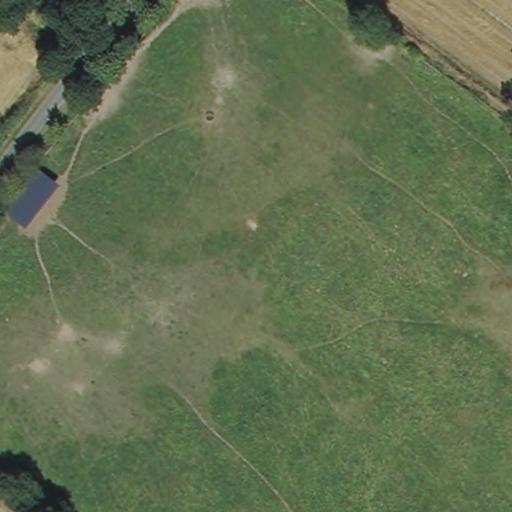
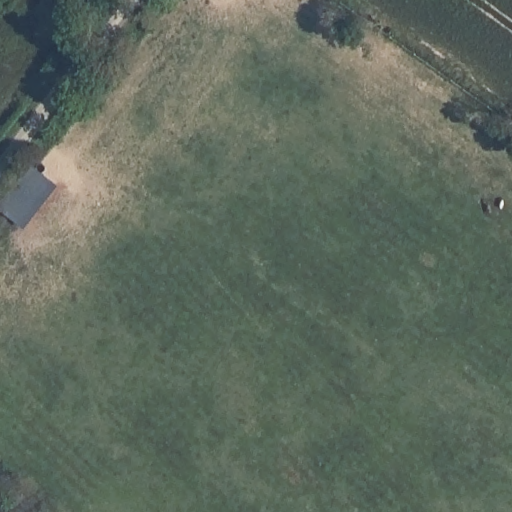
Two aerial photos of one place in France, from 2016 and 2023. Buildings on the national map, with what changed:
unchanged [(1,208),(34,164),(58,182),(28,225),(1,208)]

